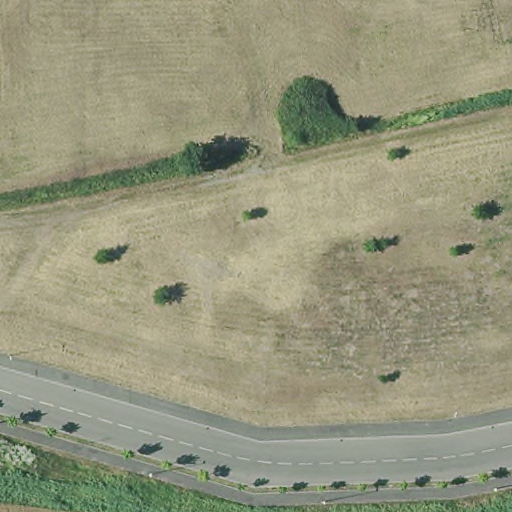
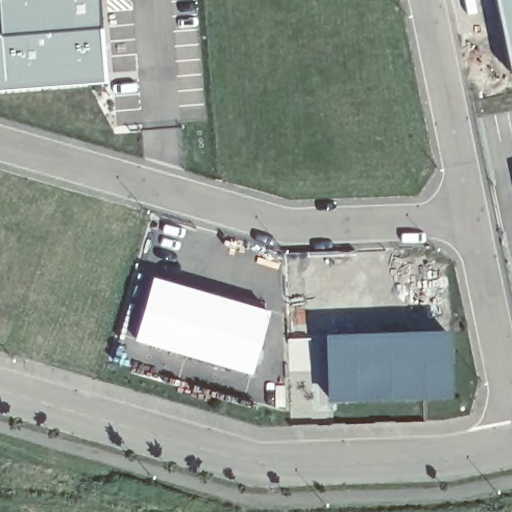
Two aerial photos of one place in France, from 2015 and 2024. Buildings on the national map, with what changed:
new [(105,82),(0,93),(0,0),(98,0),(105,82)]
new [(512,71),(510,72),(494,0),(512,0),(512,71)]
new [(269,311),(252,373),(134,340),(152,276),(269,311)]
new [(454,327),(455,396),(328,400),(323,332),(454,327)]

